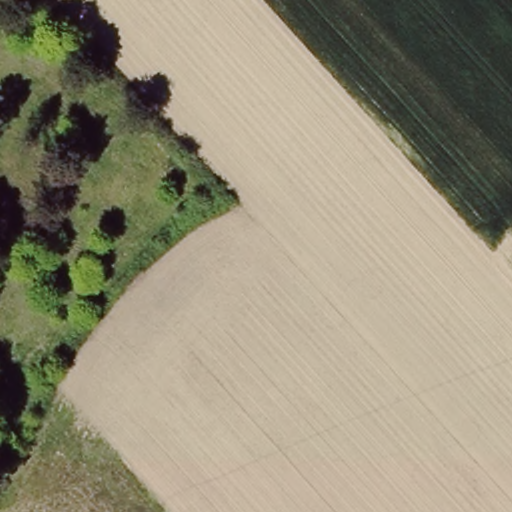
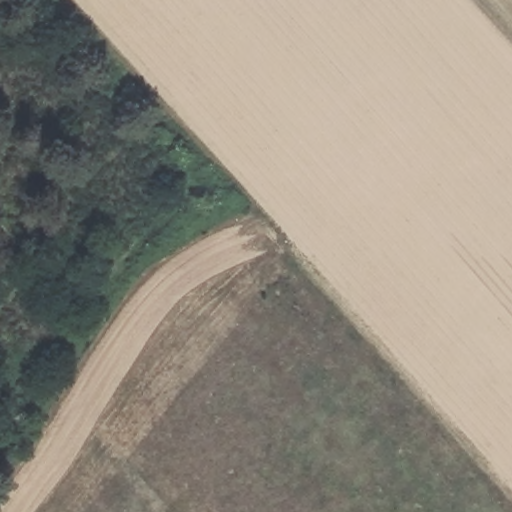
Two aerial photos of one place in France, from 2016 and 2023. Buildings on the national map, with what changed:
[]

